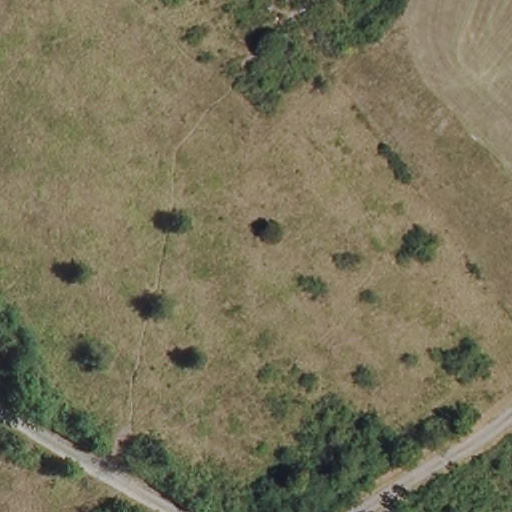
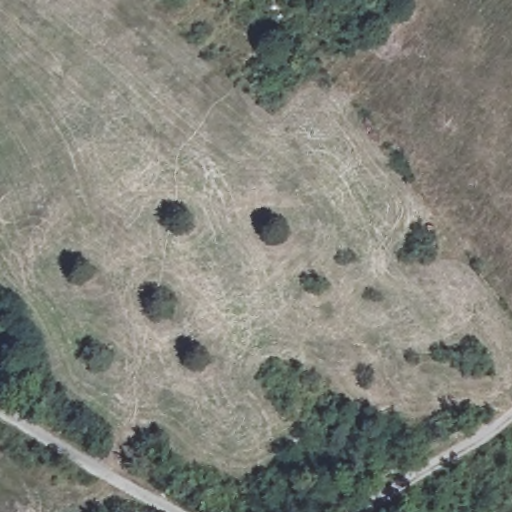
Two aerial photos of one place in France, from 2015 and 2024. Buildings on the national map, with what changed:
[]

